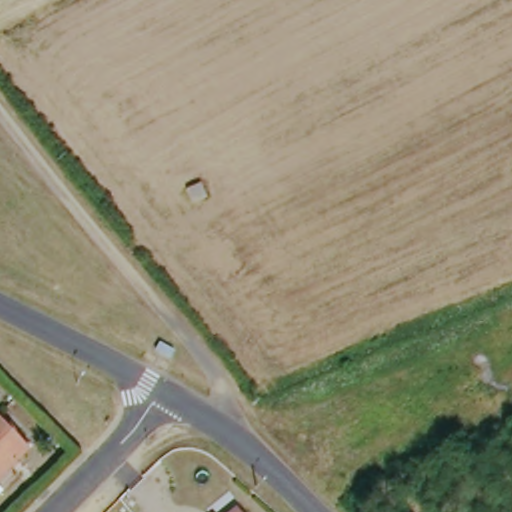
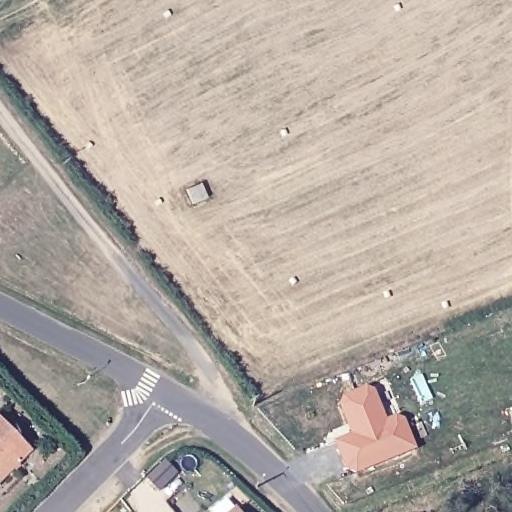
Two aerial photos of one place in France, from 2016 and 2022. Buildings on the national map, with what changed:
new [(352,438),(340,408),(343,400),(366,390),(373,393),(386,424),(397,420),(404,423),(416,451),(355,476),(346,473),(335,446),(352,438)]
unchanged [(0,479),(0,422),(27,453),(0,479)]

